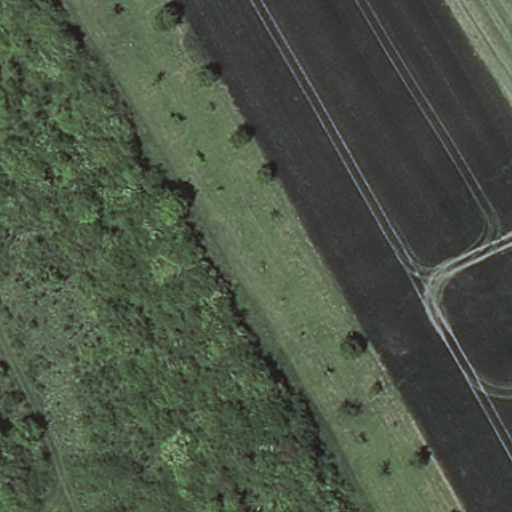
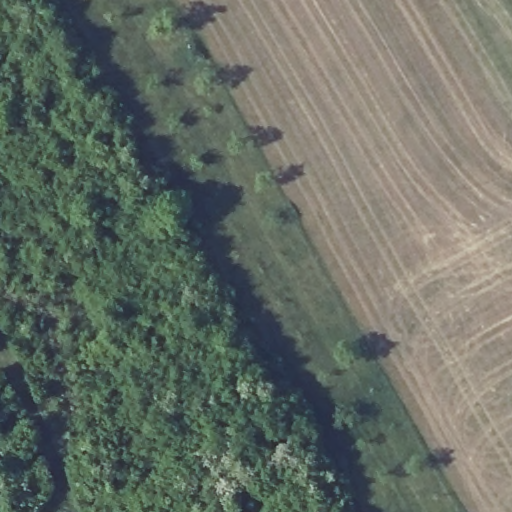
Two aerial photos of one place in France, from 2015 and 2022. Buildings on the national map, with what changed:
[]

